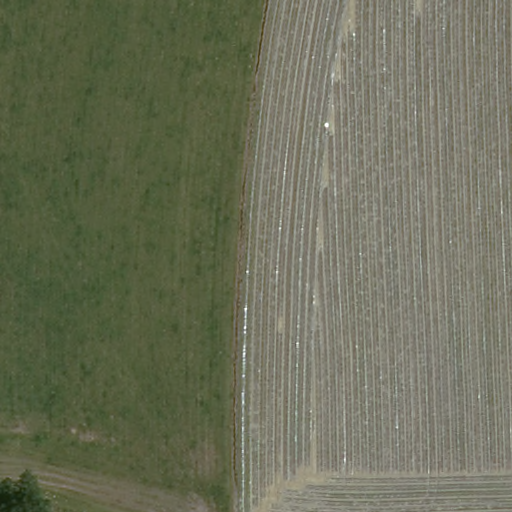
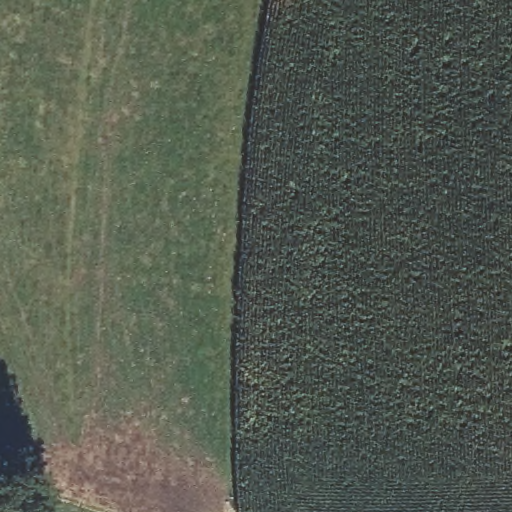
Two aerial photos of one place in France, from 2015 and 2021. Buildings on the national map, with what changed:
[]

